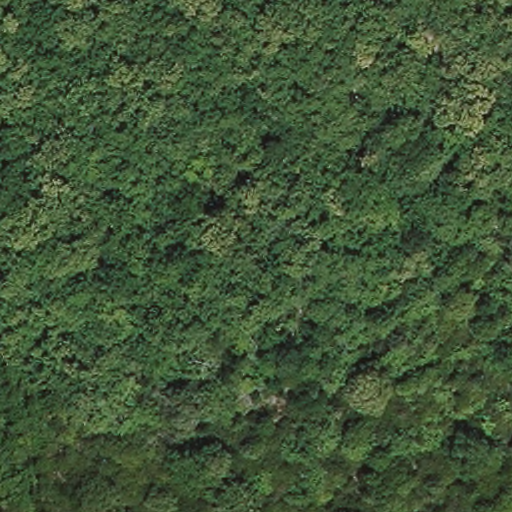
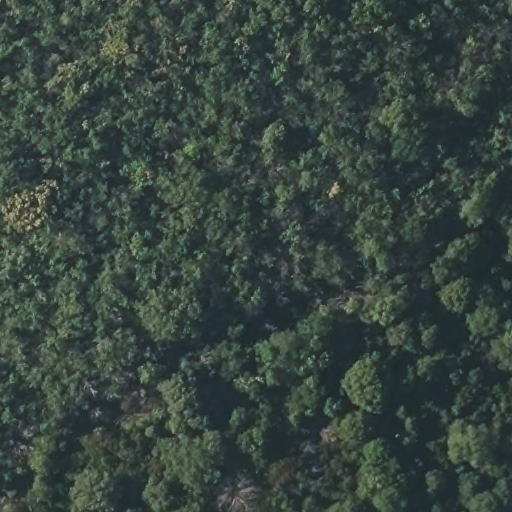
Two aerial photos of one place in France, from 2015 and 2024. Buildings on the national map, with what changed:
[]

